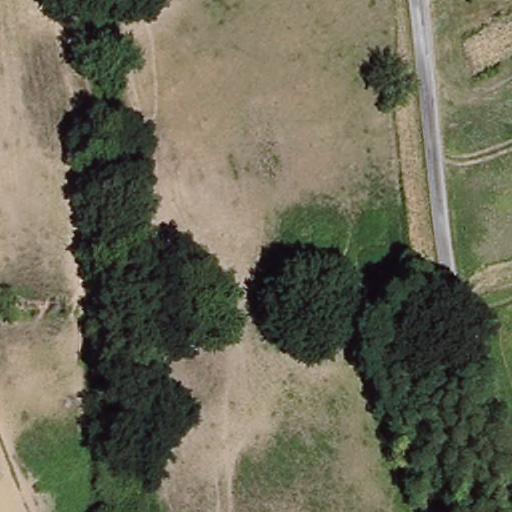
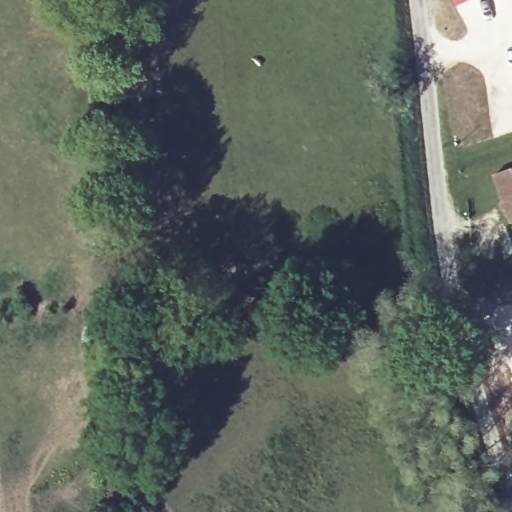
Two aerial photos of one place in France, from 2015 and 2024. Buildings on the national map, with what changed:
new [(512,227),(495,175),(512,170),(512,227)]

